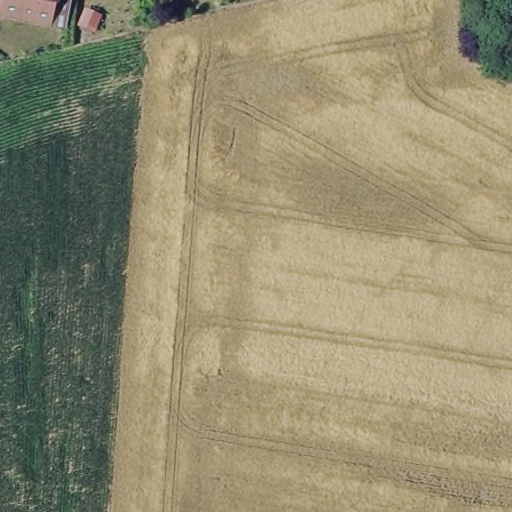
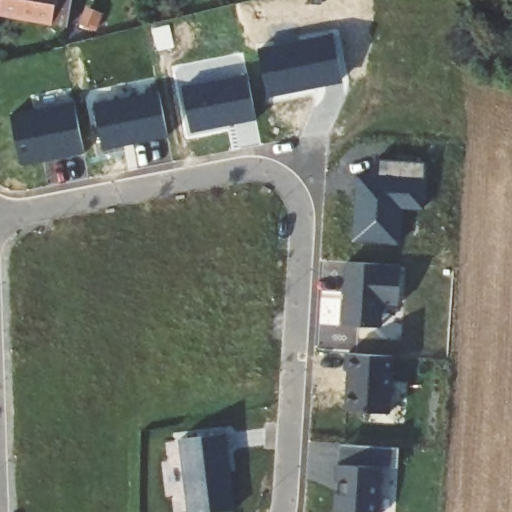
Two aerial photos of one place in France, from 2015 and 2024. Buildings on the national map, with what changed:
unchanged [(70,0),(66,25),(1,19),(4,0),(70,0)]
new [(257,49),(335,34),(344,81),(269,96),(257,49)]
new [(246,75),(255,120),(190,132),(182,88),(246,75)]
new [(158,90),(167,136),(105,150),(95,104),(158,90)]
new [(73,104),(82,151),(20,164),(10,116),(73,104)]
new [(359,172),(427,176),(425,207),(403,208),(400,244),(353,240),(359,172)]
new [(397,303),(380,302),(379,327),(342,325),(345,261),(399,263),(397,303)]
new [(390,355),(388,412),(345,410),(347,370),(344,370),(345,352),(390,355)]
new [(179,440),(227,432),(235,509),(209,512),(187,512),(179,440)]
new [(379,466),(379,467),(376,512),(334,512),(335,492),(337,492),(337,482),(335,482),(336,465),(335,465),(379,466)]

